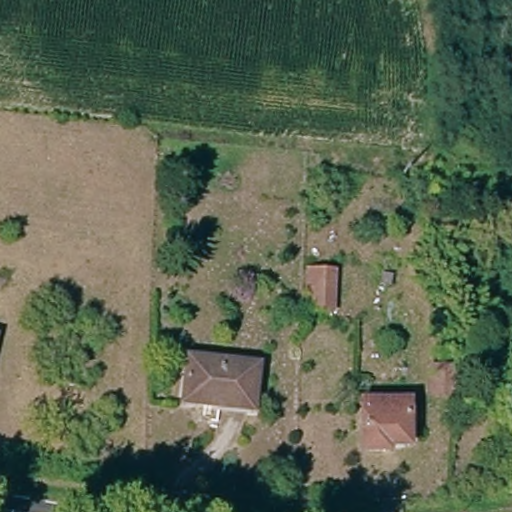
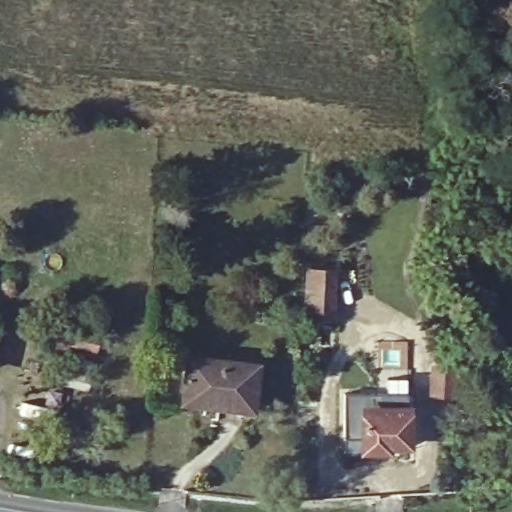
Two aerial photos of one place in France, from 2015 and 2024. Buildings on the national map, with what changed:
unchanged [(307,315),(310,272),(337,273),(335,316),(307,315)]
unchanged [(191,408),(193,361),(263,365),(262,407),(262,413),(226,410),(191,408)]
unchanged [(415,450),(391,450),(392,455),(372,455),(370,406),(413,406),(415,450)]

